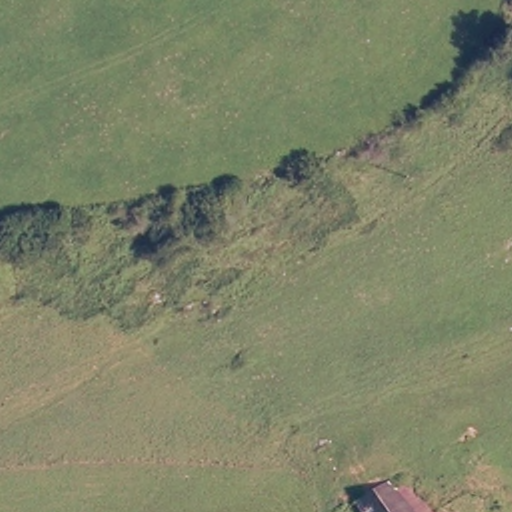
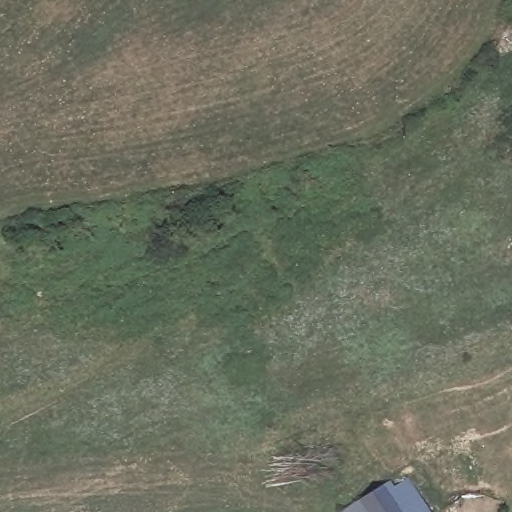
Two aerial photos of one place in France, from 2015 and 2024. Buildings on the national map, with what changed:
unchanged [(375,487),(381,495),(399,485),(410,479),(429,512),(352,512),(347,503),(375,487)]

